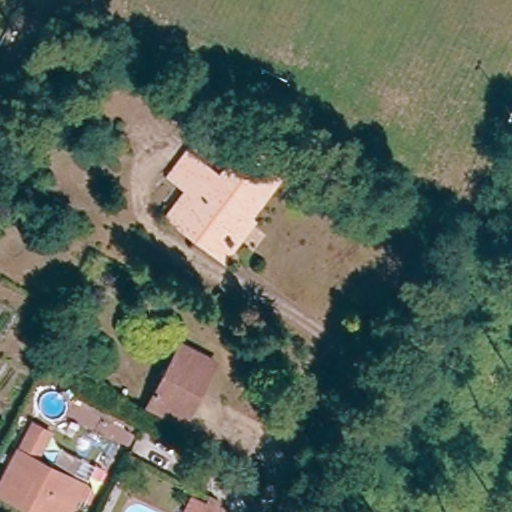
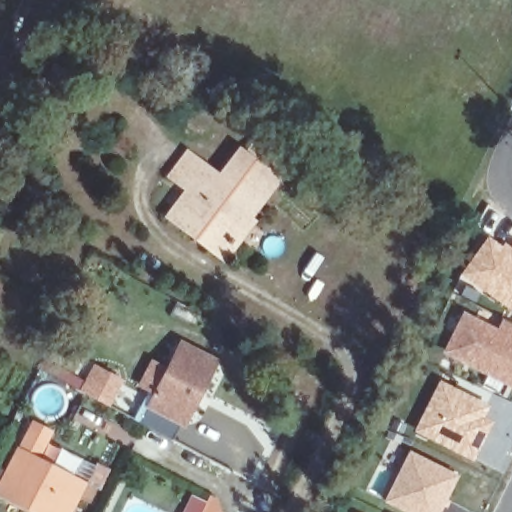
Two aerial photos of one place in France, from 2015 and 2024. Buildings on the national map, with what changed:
unchanged [(217,265),(190,244),(159,220),(180,191),(197,204),(215,181),(236,155),(241,158),(251,146),(275,165),(265,178),(272,185),(242,222),(247,227),(217,265)]
unchanged [(197,204),(180,191),(162,176),(179,155),(215,181),(197,204)]
new [(487,235),(501,244),(504,241),(512,247),(512,311),(481,291),(475,302),(460,293),(467,282),(458,275),(487,235)]
new [(442,354),(462,311),(496,329),(502,317),(512,322),(512,389),(442,354)]
unchanged [(179,342),(214,361),(199,390),(195,389),(179,422),(148,405),(179,342)]
unchanged [(99,371),(93,385),(83,381),(89,367),(99,371)]
new [(490,404),(485,416),(493,420),(474,461),(410,431),(435,378),(490,404)]
unchanged [(0,492),(0,482),(30,422),(48,431),(34,459),(83,484),(74,499),(67,512),(38,512),(14,499),(0,492)]
new [(459,475),(440,512),(400,512),(382,503),(407,449),(459,475)]
unchanged [(206,494),(209,495),(215,512),(198,512),(206,494)]

